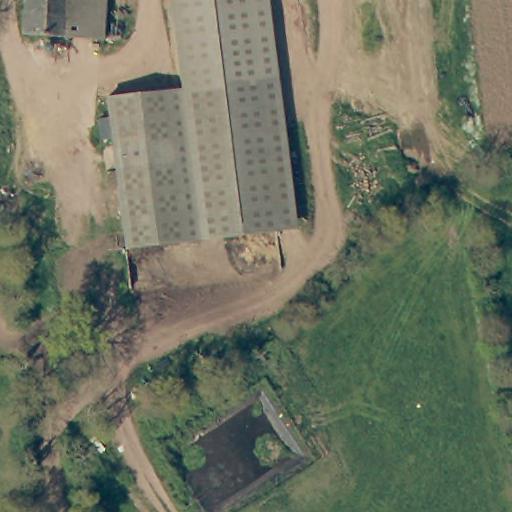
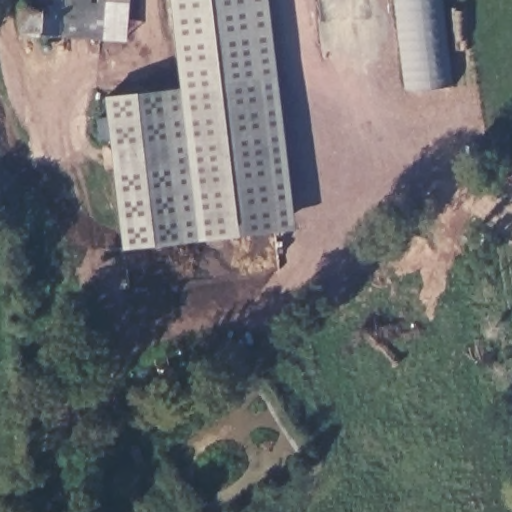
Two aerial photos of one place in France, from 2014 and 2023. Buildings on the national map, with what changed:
unchanged [(125,45),(61,37),(20,35),(21,0),(128,0),(125,45)]
unchanged [(268,83),(285,187),(292,232),(285,234),(127,246),(103,106),(192,95),(191,90),(177,0),(256,0),(268,83)]
new [(397,0),(446,0),(456,87),(407,91),(397,0)]

